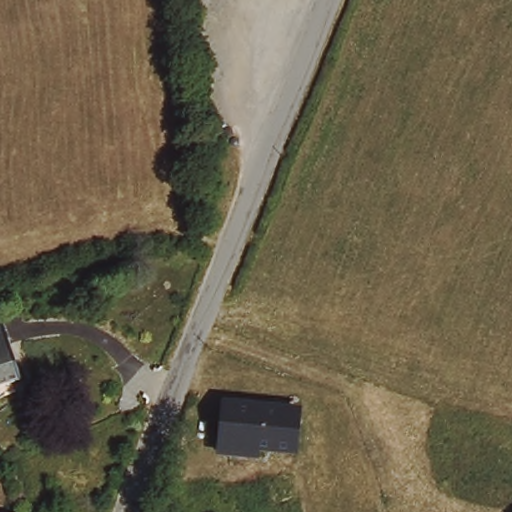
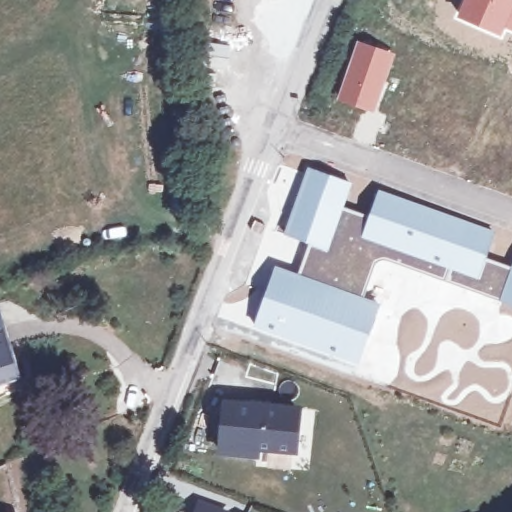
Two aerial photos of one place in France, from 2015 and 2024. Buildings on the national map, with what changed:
new [(465,0),(512,0),(512,32),(504,29),(501,37),(457,18),(465,0)]
new [(357,40),(396,54),(375,113),(336,100),(357,40)]
new [(307,166),(352,182),(344,206),(368,215),(378,188),(494,230),(486,257),(511,266),(498,301),(420,272),(384,261),(376,264),(364,296),(296,272),(307,244),(281,234),(307,166)]
new [(511,266),(512,262),(512,306),(498,301),(511,266)]
new [(274,264),(296,272),(364,296),(381,303),(359,367),(251,327),(274,264)]
unchanged [(0,383),(0,328),(8,326),(23,377),(0,383)]
unchanged [(290,409),(285,451),(209,443),(216,401),(290,409)]

